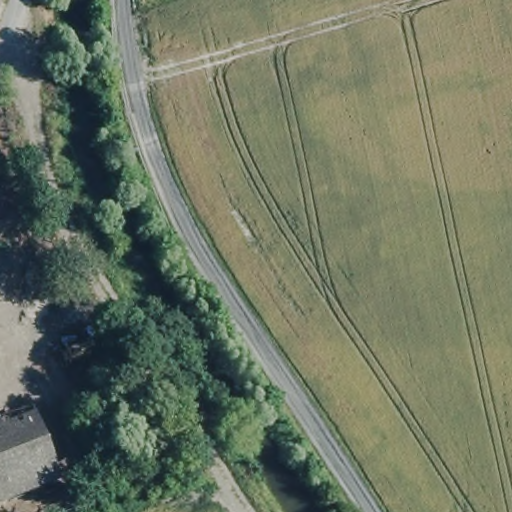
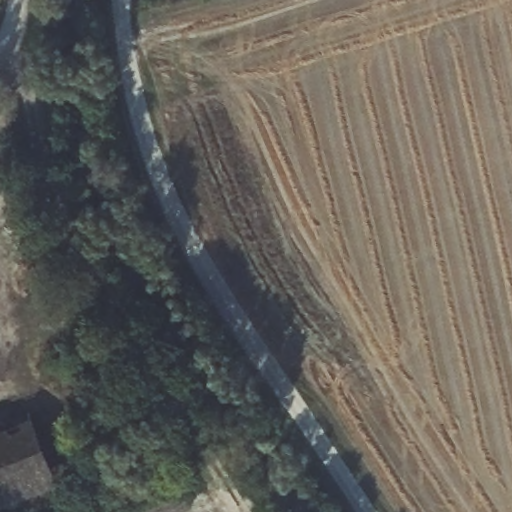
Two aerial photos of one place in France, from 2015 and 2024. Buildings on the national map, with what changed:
unchanged [(31,409),(63,484),(0,509),(0,421),(31,409)]

